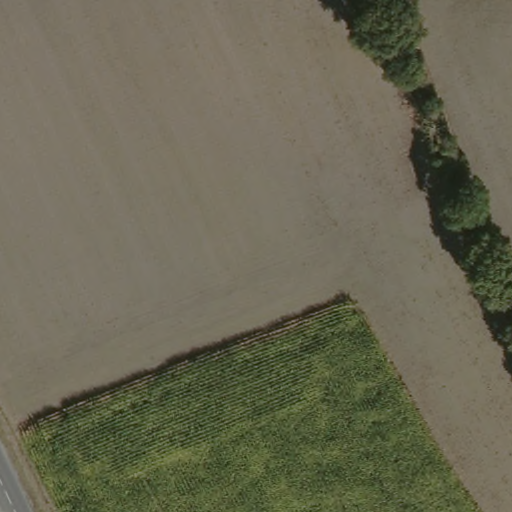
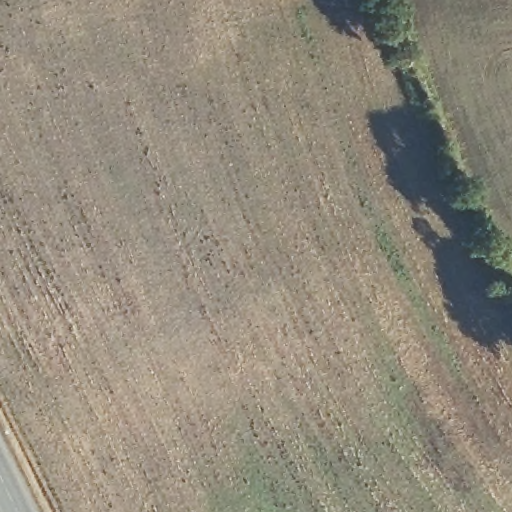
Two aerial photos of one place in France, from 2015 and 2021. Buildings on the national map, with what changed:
[]

